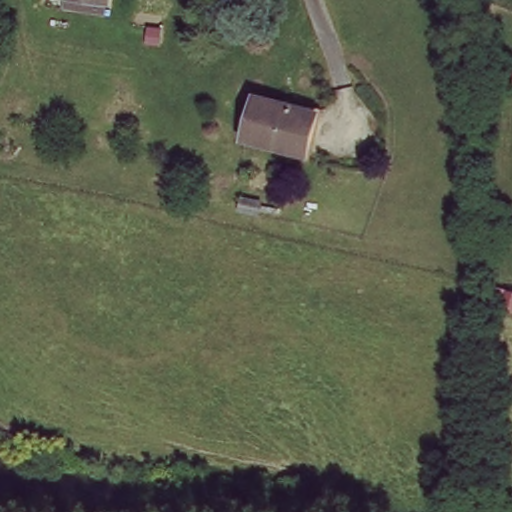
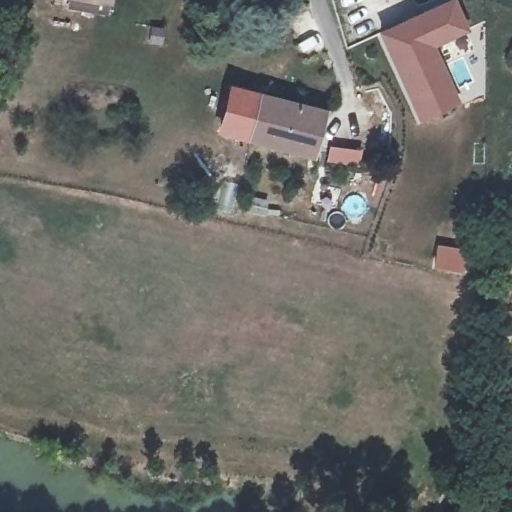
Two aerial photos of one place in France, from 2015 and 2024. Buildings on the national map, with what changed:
unchanged [(67,0),(109,0),(108,9),(76,3),(66,0),(67,0)]
new [(462,103),(421,121),(379,31),(445,0),(456,0),(470,30),(437,47),(462,103)]
unchanged [(251,144),(261,101),(324,118),(314,158),(313,159),(251,144)]
unchanged [(241,199),(258,204),(257,214),(239,211),(241,199)]

